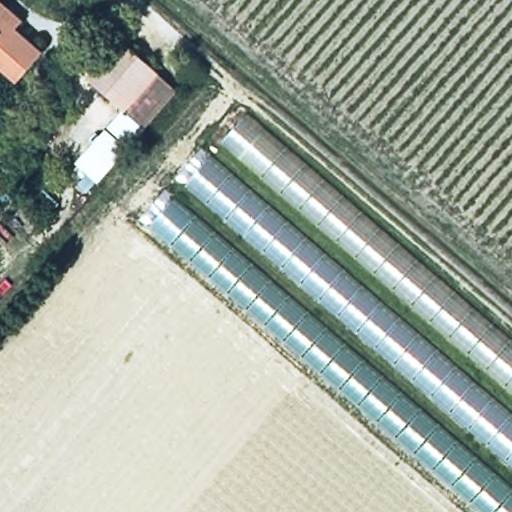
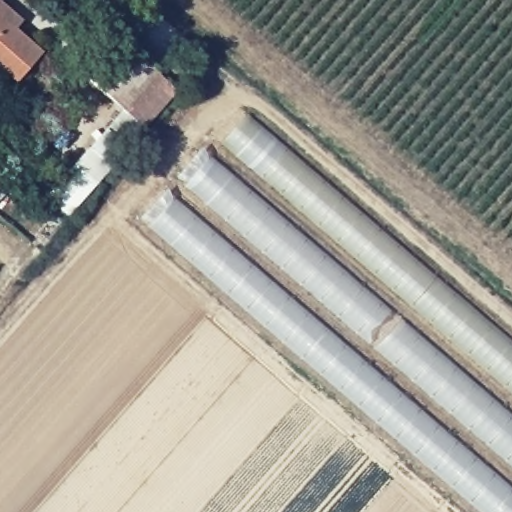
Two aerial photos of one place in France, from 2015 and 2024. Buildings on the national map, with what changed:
unchanged [(0,68),(0,0),(2,0),(8,5),(23,17),(16,26),(43,49),(16,82),(0,68)]
unchanged [(116,35),(153,69),(120,107),(83,75),(116,35)]
unchanged [(178,94),(85,195),(74,185),(88,171),(77,162),(120,107),(153,69),(178,94)]
unchanged [(248,116),(512,341),(512,512),(472,512),(143,231),(248,116)]

